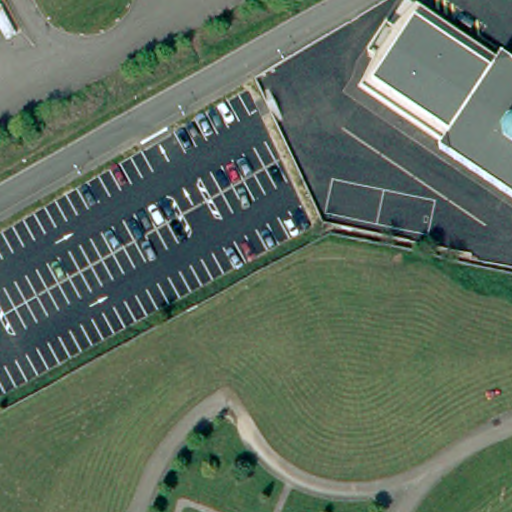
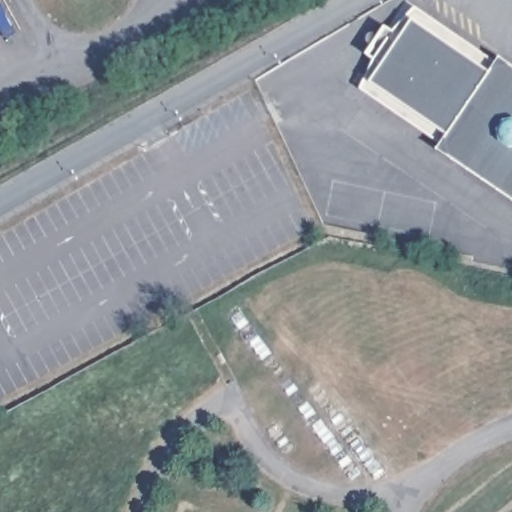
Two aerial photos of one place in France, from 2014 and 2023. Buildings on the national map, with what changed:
unchanged [(385,69),(370,56),(387,31),(405,40),(417,21),(493,72),(505,60),(512,65),(512,198),(439,151),(451,133),(374,84),(385,69)]

